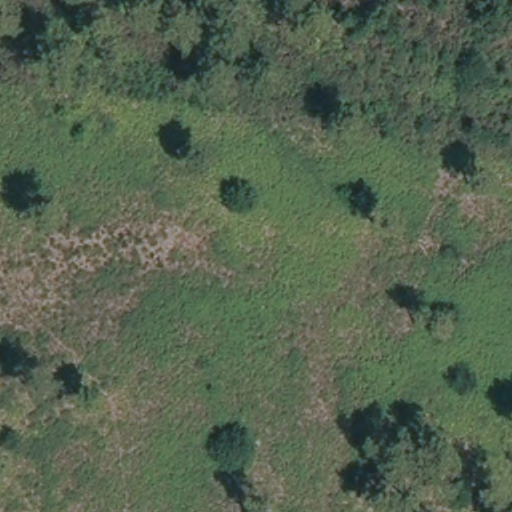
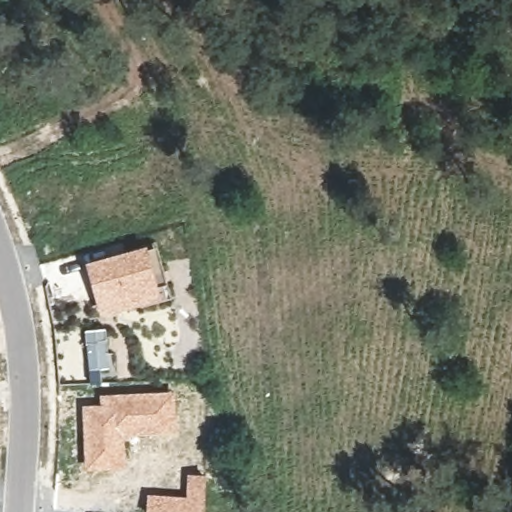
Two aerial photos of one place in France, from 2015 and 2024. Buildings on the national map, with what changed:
new [(148,245),(163,300),(100,317),(85,263),(148,245)]
new [(102,370),(102,384),(90,384),(85,330),(105,328),(110,369),(102,370)]
new [(174,414),(177,414),(177,432),(125,435),(126,467),(85,469),(82,405),(101,404),(101,395),(173,391),(174,414)]
new [(186,495),(187,473),(207,474),(204,512),(146,512),(147,493),(186,495)]

